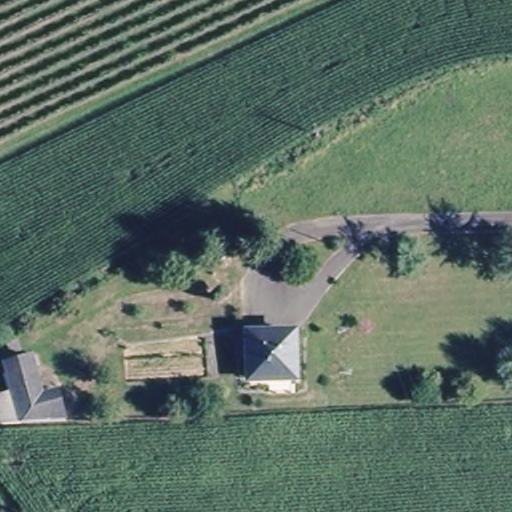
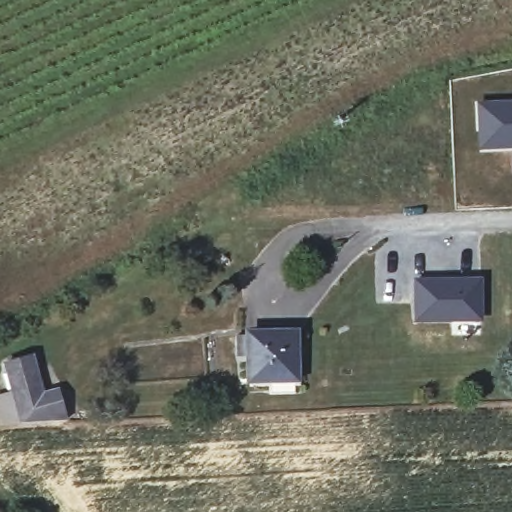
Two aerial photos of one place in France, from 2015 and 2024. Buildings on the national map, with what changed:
new [(512,97),(512,149),(477,150),(475,100),(512,97)]
new [(482,276),(482,321),(413,322),(412,277),(482,276)]
unchanged [(247,353),(236,353),(236,334),(247,334),(247,333),(291,332),(292,377),(247,378),(247,353)]
unchanged [(0,403),(18,399),(10,362),(35,358),(45,395),(60,392),(67,425),(5,428),(0,405),(0,403)]

